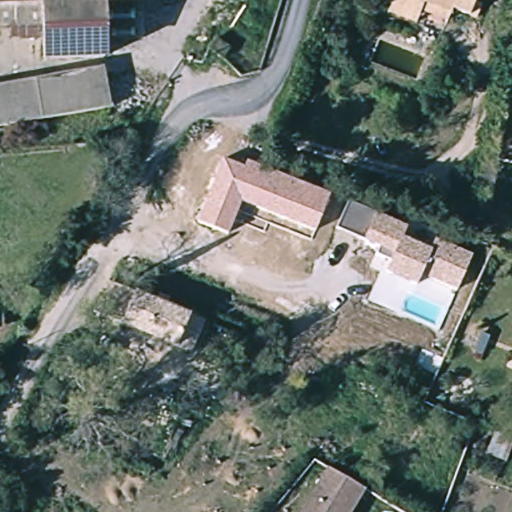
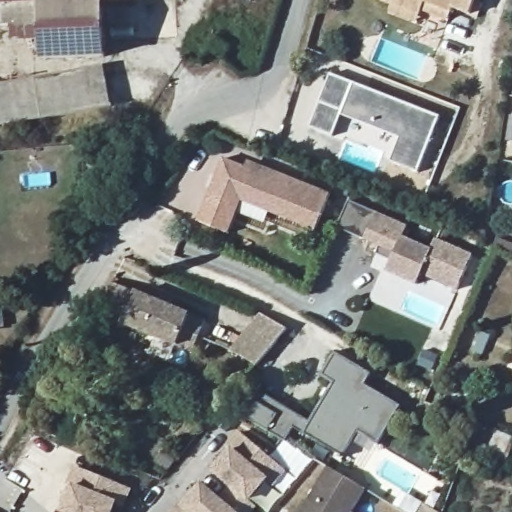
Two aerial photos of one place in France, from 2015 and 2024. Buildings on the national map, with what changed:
unchanged [(107,56),(43,62),(41,34),(15,36),(14,7),(0,7),(0,0),(107,0),(107,56)]
unchanged [(474,20),(458,13),(451,28),(432,20),(429,28),(395,17),(397,3),(390,0),(482,0),(474,20)]
unchanged [(0,98),(0,86),(103,69),(105,80),(0,98)]
new [(391,161),(401,138),(341,116),(333,137),(310,127),(330,74),(439,117),(418,172),(391,161)]
unchanged [(0,132),(0,98),(105,80),(109,112),(0,132)]
unchanged [(244,166),(247,159),(329,192),(314,230),(241,201),(228,231),(199,217),(222,161),(244,166)]
unchanged [(377,211),(408,225),(403,237),(428,247),(434,236),(469,254),(455,287),(422,272),(417,283),(386,268),(388,259),(378,254),(380,247),(363,239),(338,227),(349,201),(377,211)]
unchanged [(208,318),(190,354),(99,316),(120,281),(208,318)]
new [(286,328),(257,366),(229,349),(260,313),(286,328)]
new [(258,388),(309,419),(333,381),(320,374),(333,352),(368,373),(363,383),(399,404),(376,440),(357,429),(341,455),(292,425),(283,439),(242,414),(258,388)]
new [(286,470),(273,487),(266,481),(250,501),(248,500),(230,486),(229,487),(211,471),(228,451),(223,447),(237,429),(286,470)]
new [(65,481),(73,465),(132,489),(124,508),(115,505),(113,512),(60,512),(58,511),(70,485),(65,481)]
unchanged [(371,486),(356,512),(302,512),(328,465),(371,486)]
new [(169,512),(178,501),(183,506),(202,483),(217,495),(230,486),(248,500),(257,506),(253,512),(169,512)]

